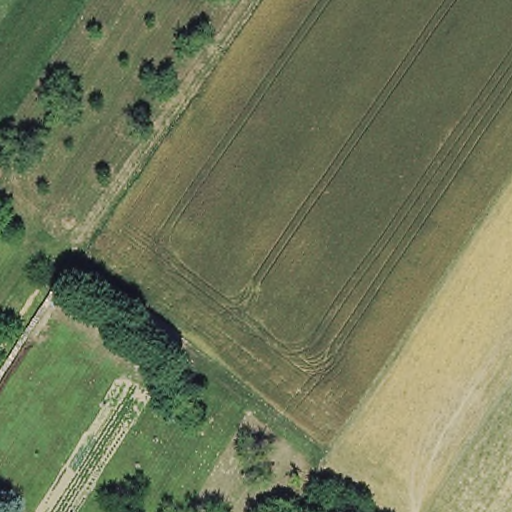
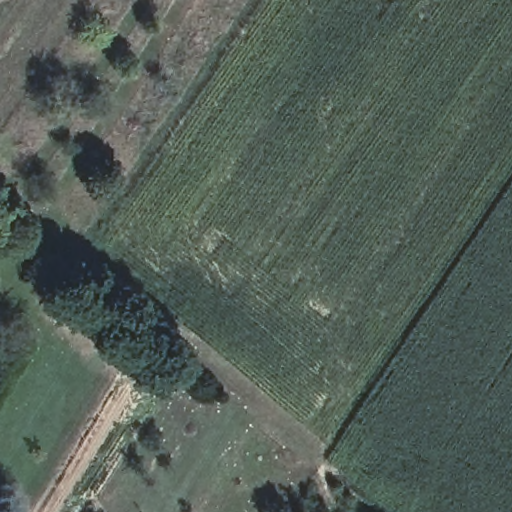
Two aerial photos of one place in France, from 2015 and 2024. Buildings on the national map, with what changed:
[]

